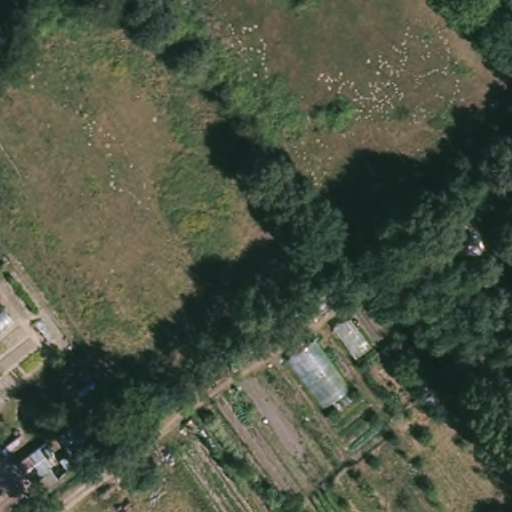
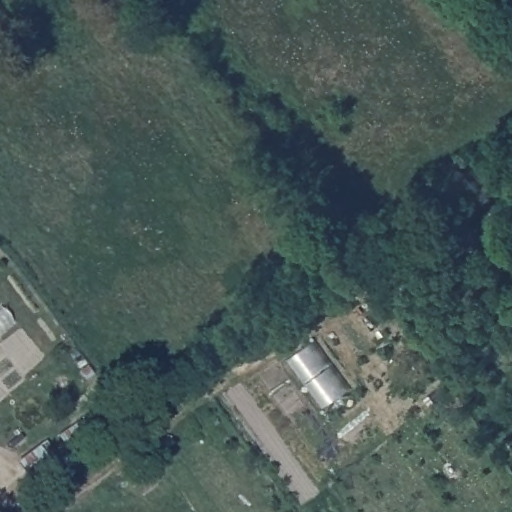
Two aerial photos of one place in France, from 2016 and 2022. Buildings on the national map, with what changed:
unchanged [(35,479),(21,462),(47,441),(60,459),(35,479)]

